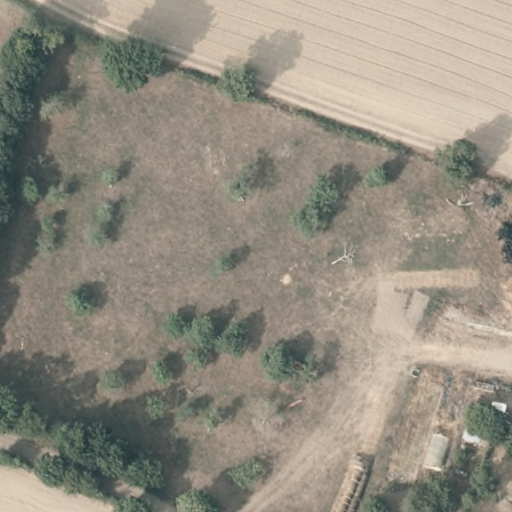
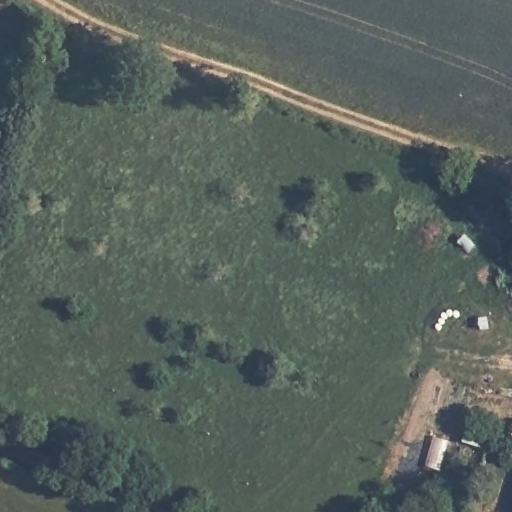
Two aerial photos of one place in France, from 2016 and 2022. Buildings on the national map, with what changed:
unchanged [(500,424),(496,449),(459,439),(469,417),(500,424)]

